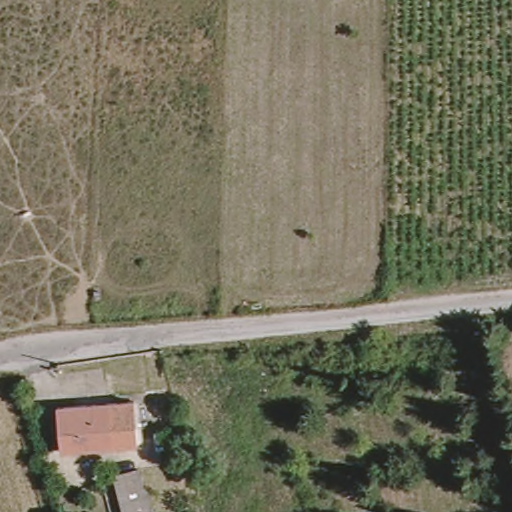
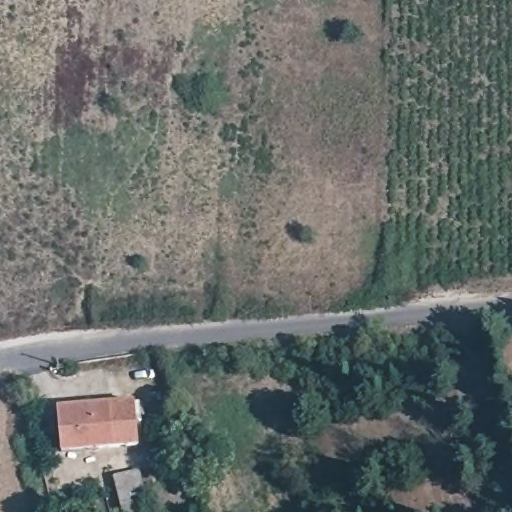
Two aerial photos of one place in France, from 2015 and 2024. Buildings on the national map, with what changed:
unchanged [(138,447),(63,452),(60,412),(133,406),(138,447)]
unchanged [(158,512),(131,512),(120,470),(146,462),(158,512)]

